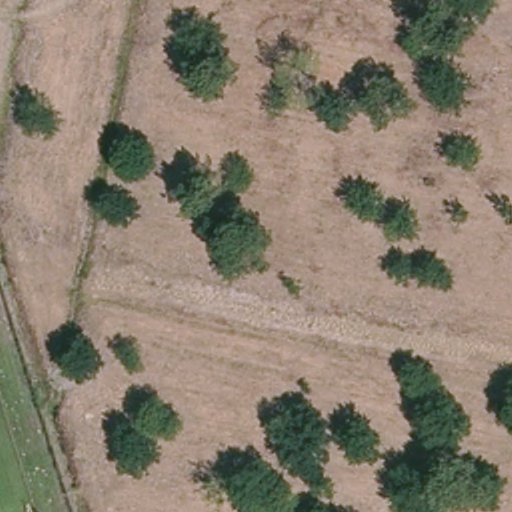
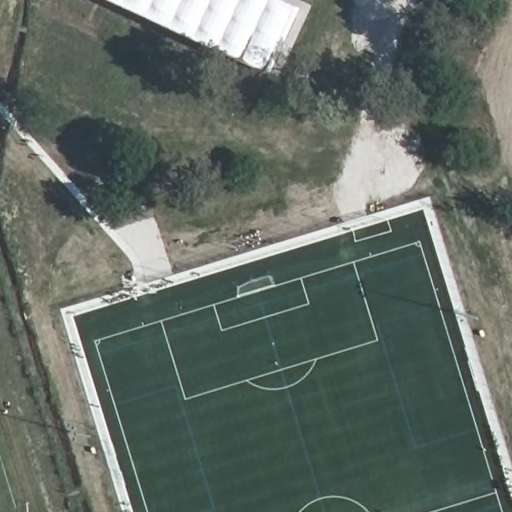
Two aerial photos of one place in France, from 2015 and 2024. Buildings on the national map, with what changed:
new [(275,75),(111,0),(288,0),(306,9),(275,75)]

